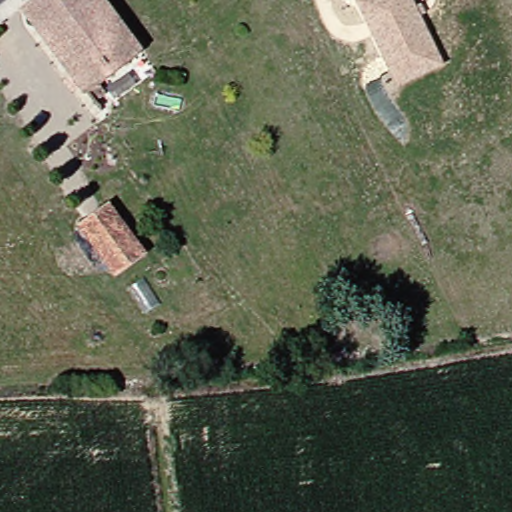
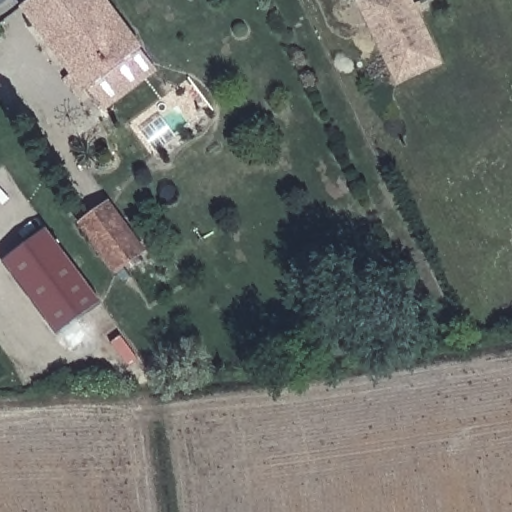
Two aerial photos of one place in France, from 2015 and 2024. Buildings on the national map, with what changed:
unchanged [(96,97),(23,0),(108,0),(150,56),(96,97)]
unchanged [(393,72),(357,1),(358,0),(412,0),(437,50),(444,63),(399,85),(393,72)]
unchanged [(111,203),(149,252),(119,274),(83,225),(111,203)]
new [(50,227),(102,302),(56,333),(4,259),(50,227)]

